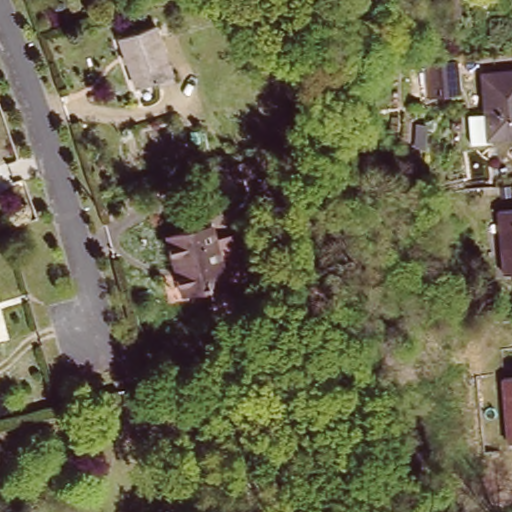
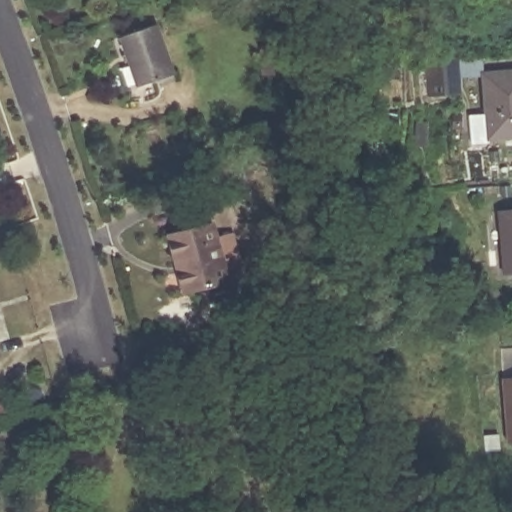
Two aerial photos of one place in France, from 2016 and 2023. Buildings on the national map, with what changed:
unchanged [(174,74),(138,86),(123,39),(159,26),(174,74)]
unchanged [(444,61),(453,61),(463,60),(464,94),(433,96),(432,61),(444,61)]
unchanged [(512,129),(493,130),(493,135),(475,136),(474,111),(491,110),(489,75),(512,73),(512,129)]
unchanged [(512,272),(507,272),(503,211),(512,210),(512,272)]
unchanged [(179,258),(174,233),(218,223),(230,279),(195,287),(186,289),(179,258)]
unchanged [(512,441),(504,442),(501,380),(512,379),(512,441)]

